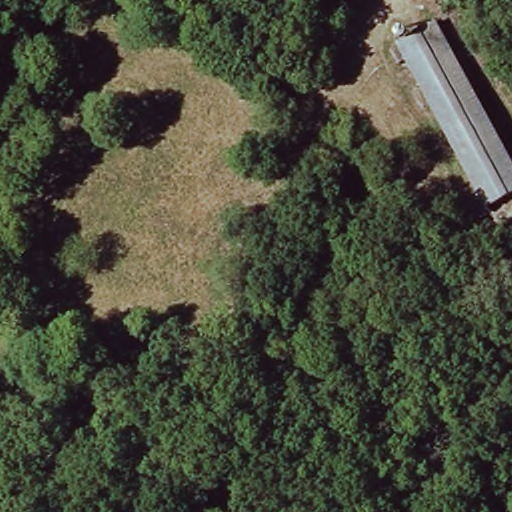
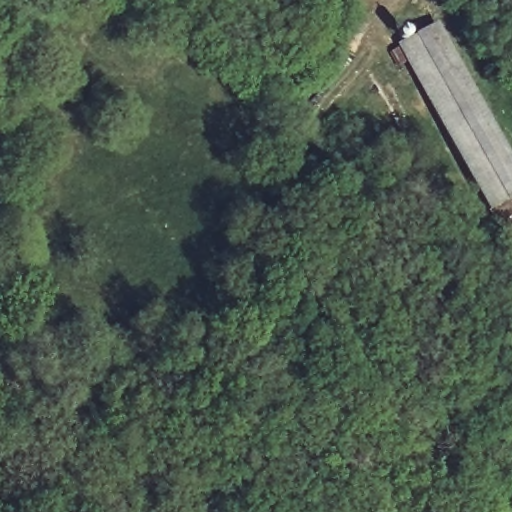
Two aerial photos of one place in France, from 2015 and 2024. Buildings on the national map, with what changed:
unchanged [(512,175),(512,197),(481,210),(406,42),(444,25),(512,175)]

